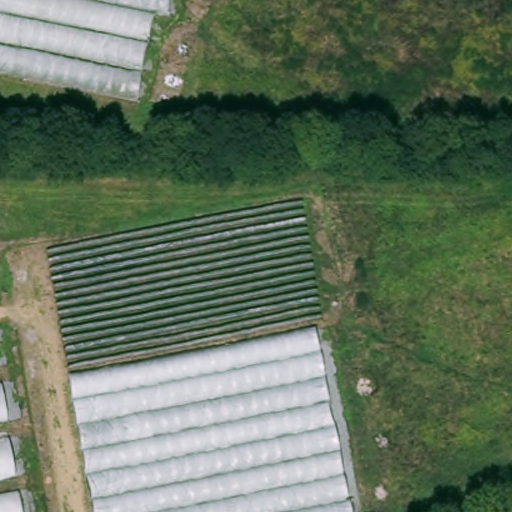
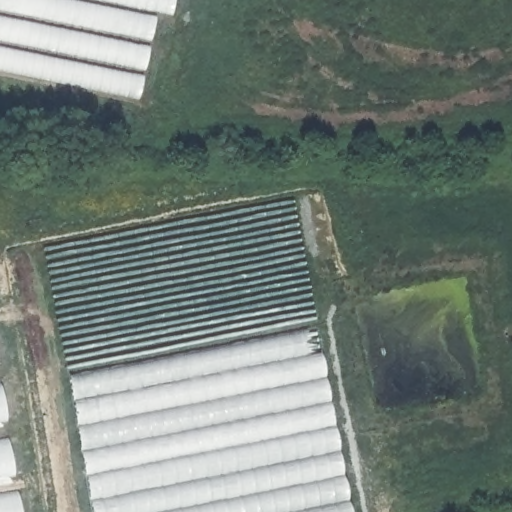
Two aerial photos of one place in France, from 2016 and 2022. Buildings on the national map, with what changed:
unchanged [(157,14),(142,98),(0,70),(0,0),(179,0),(176,16),(157,14)]
unchanged [(66,376),(319,331),(352,512),(90,512),(66,376)]
unchanged [(0,380),(21,512),(0,512),(0,380)]

